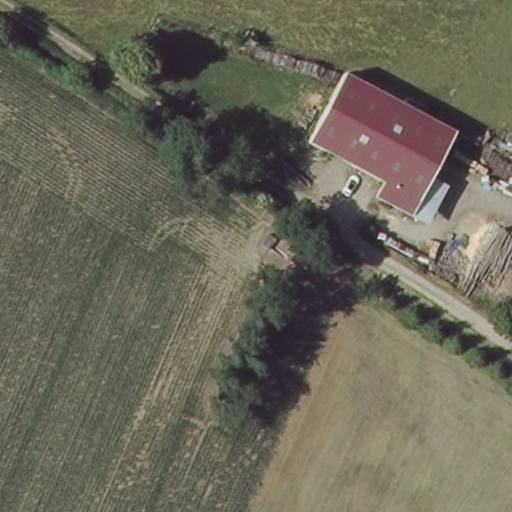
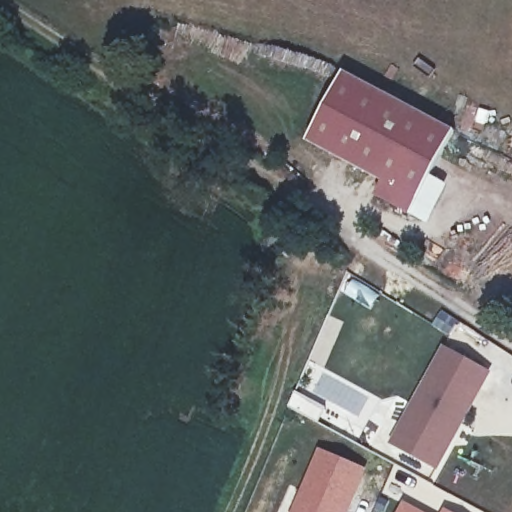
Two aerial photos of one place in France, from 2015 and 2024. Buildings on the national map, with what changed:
unchanged [(376,194),(384,179),(309,138),(346,70),(456,130),(412,213),(376,194)]
new [(438,469),(389,443),(443,346),(492,373),(438,469)]
new [(369,470),(350,512),(293,512),(321,449),(369,470)]
new [(423,512),(398,512),(404,501),(423,512)]
new [(450,512),(442,512),(444,508),(450,512)]

